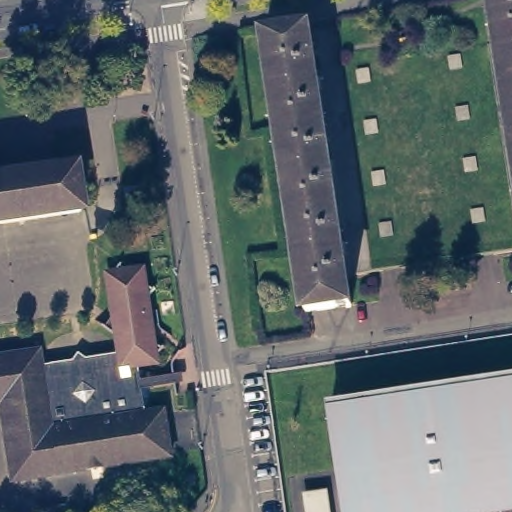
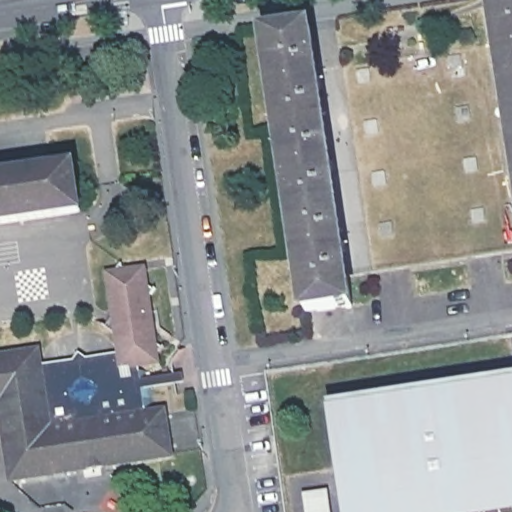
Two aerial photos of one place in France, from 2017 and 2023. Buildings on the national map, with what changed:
unchanged [(512,0),(512,163),(488,0),(512,0)]
unchanged [(352,300),(307,307),(266,30),(311,23),(352,300)]
unchanged [(75,165),(81,212),(0,224),(0,176),(75,165)]
unchanged [(39,345),(41,365),(120,351),(118,335),(117,332),(115,330),(95,315),(96,315),(106,322),(114,311),(109,276),(122,259),(123,260),(121,261),(128,266),(145,263),(147,280),(153,285),(155,283),(156,284),(151,291),(150,293),(150,296),(156,338),(162,343),(164,342),(165,342),(152,360),(139,361),(140,367),(148,366),(149,374),(152,373),(153,382),(150,383),(153,401),(146,402),(146,408),(165,405),(172,451),(11,476),(0,405),(0,351),(39,345)]
unchanged [(326,402),(512,375),(512,510),(499,512),(343,512),(326,402)]
unchanged [(319,493),(321,512),(306,512),(303,495),(319,493)]

